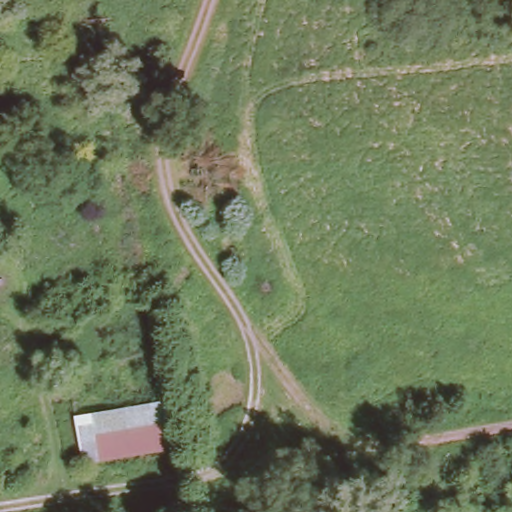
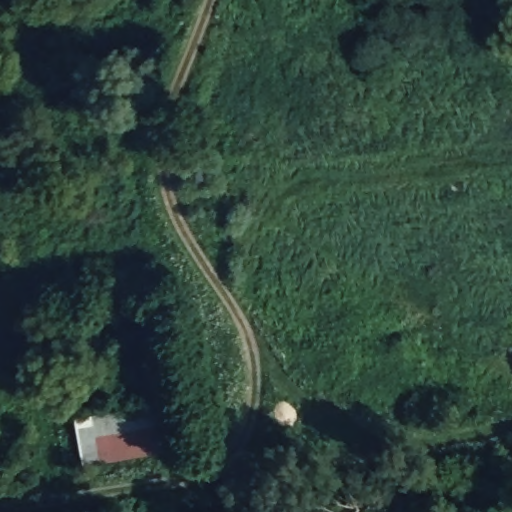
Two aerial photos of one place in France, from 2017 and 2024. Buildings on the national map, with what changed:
unchanged [(182,452),(85,466),(76,418),(176,404),(182,452)]

